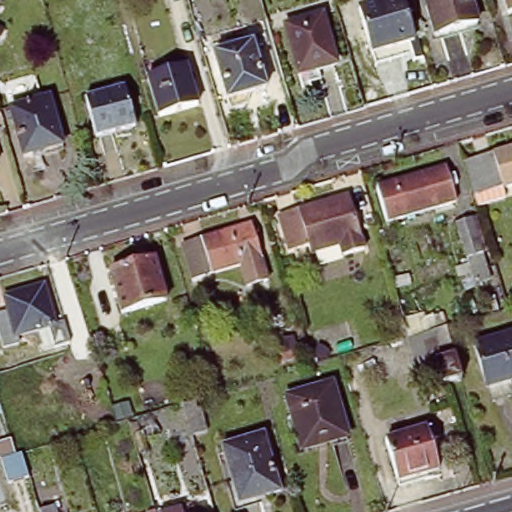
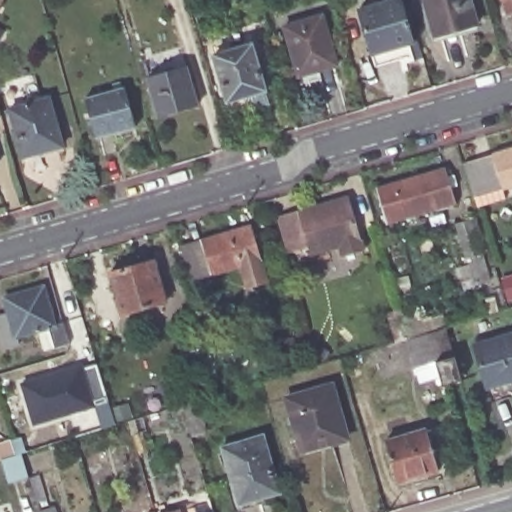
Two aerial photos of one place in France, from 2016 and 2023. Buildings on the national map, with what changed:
unchanged [(0,8),(0,0),(4,0),(0,8)]
unchanged [(396,0),(400,0),(413,44),(373,56),(360,11),(396,0)]
unchanged [(472,27),(432,38),(421,0),(465,0),(472,27)]
unchanged [(512,13),(503,16),(498,0),(512,0),(512,13)]
unchanged [(323,21),(337,71),(300,81),(285,32),(323,21)]
unchanged [(212,55),(250,44),(262,86),(241,92),(243,102),(240,102),(240,105),(230,107),(230,106),(226,107),(212,55)]
unchanged [(185,66),(197,107),(159,119),(147,76),(185,66)]
unchanged [(125,90),(135,127),(97,139),(87,100),(125,90)]
unchanged [(49,100),(62,147),(25,158),(11,110),(49,100)]
unchanged [(1,115),(0,115),(0,111),(1,115)]
unchanged [(512,186),(500,190),(502,197),(475,205),(462,164),(512,150),(512,186)]
unchanged [(445,170),(455,202),(387,223),(377,191),(445,170)]
unchanged [(285,247),(275,215),(343,195),(353,226),(359,247),(338,253),(334,242),(305,251),(302,242),(285,247)]
unchanged [(472,222),(490,282),(475,286),(457,226),(472,222)]
unchanged [(178,248),(247,228),(265,285),(243,290),(237,267),(187,282),(178,248)]
unchanged [(155,262),(166,303),(123,316),(111,275),(155,262)]
unchanged [(11,312),(10,309),(7,296),(44,285),(55,322),(65,320),(70,338),(46,346),(40,327),(18,333),(21,342),(0,349),(0,316),(11,312)]
unchanged [(395,311),(402,322),(432,316),(438,331),(447,327),(452,351),(445,356),(452,381),(435,387),(431,375),(417,376),(407,335),(391,337),(385,314),(395,311)]
unchanged [(512,381),(487,388),(475,347),(512,337),(512,381)]
new [(51,376),(52,379),(60,377),(62,372),(82,366),(83,369),(97,365),(109,404),(35,427),(22,385),(51,376)]
unchanged [(285,397),(332,384),(348,438),(330,443),(327,437),(299,445),(297,438),(293,439),(289,422),(292,421),(285,397)]
unchanged [(198,403),(205,432),(192,437),(184,407),(198,403)]
unchanged [(423,430),(435,471),(394,482),(381,441),(423,430)]
unchanged [(263,437),(280,493),(238,505),(222,448),(263,437)]
new [(15,457),(22,455),(29,477),(9,484),(2,461),(15,457)]
unchanged [(178,512),(169,512),(177,510),(178,512)]

